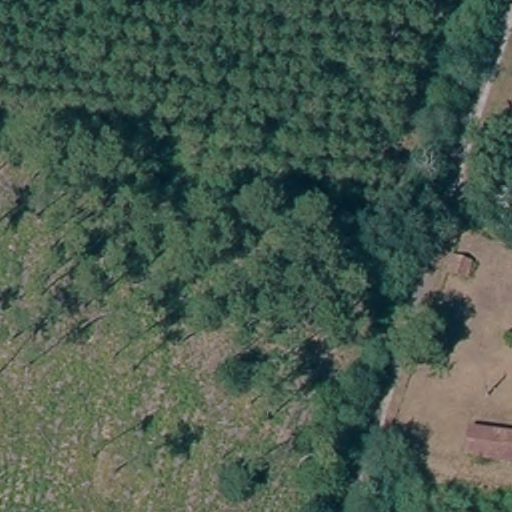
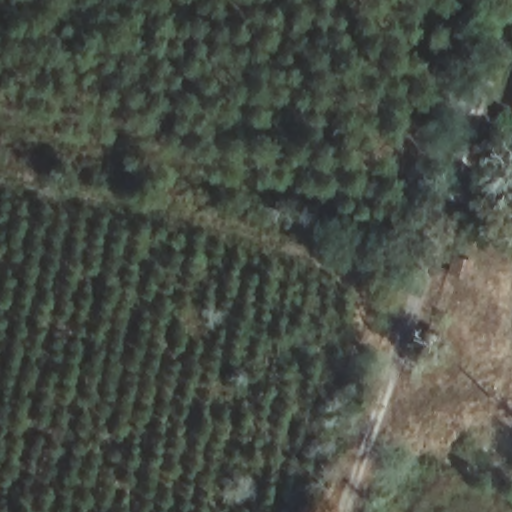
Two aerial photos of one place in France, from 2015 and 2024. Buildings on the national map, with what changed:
unchanged [(461,253),(478,260),(474,271),(457,265),(461,253)]
demolished [(466,427),(512,432),(512,465),(462,458),(466,427)]

